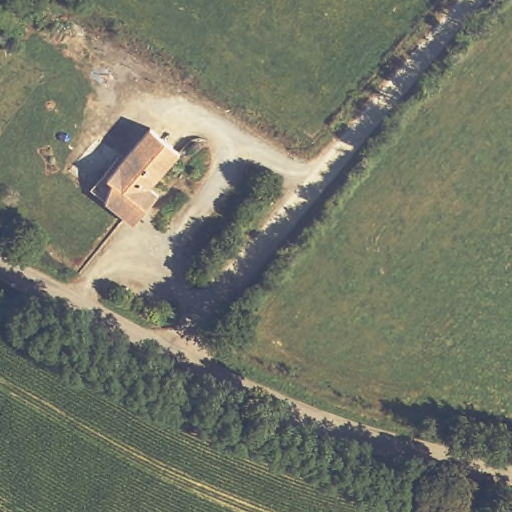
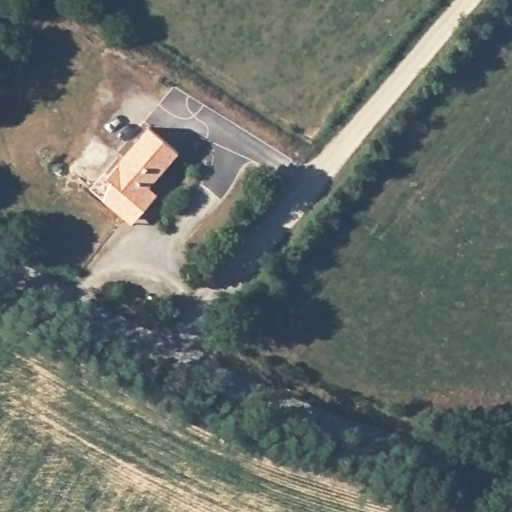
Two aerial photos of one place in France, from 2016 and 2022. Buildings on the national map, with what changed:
unchanged [(107,173),(112,178),(162,124),(188,151),(149,192),(157,201),(129,230),(103,201),(91,190),(107,173)]

